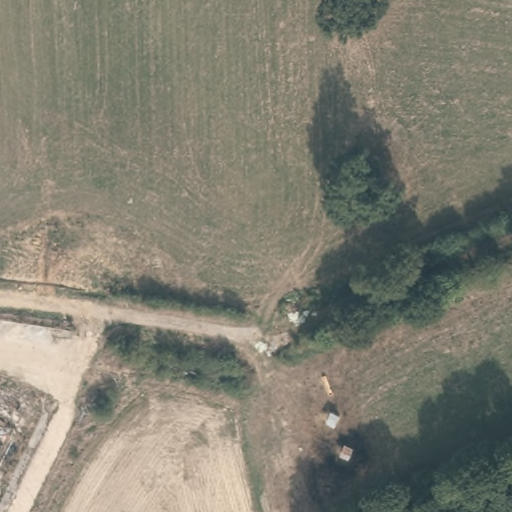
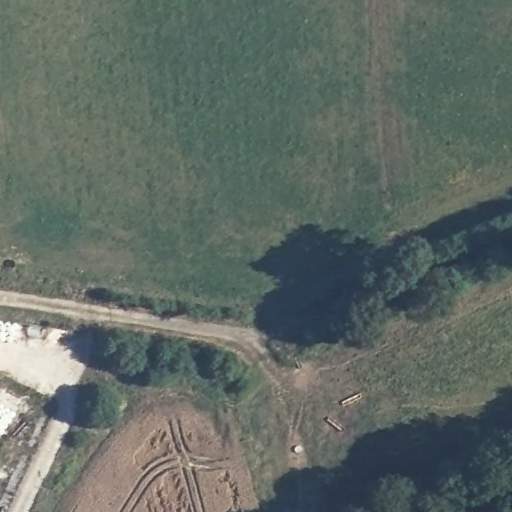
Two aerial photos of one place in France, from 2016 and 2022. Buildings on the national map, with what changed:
unchanged [(0,456),(0,382),(34,402),(0,456)]

